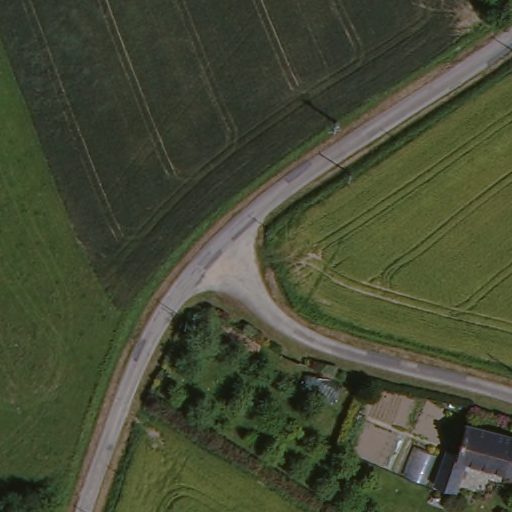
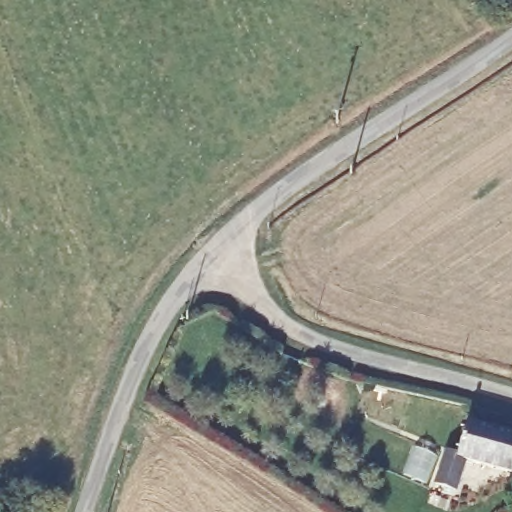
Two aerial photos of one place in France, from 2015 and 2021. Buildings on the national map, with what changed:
unchanged [(462,492),(440,485),(454,451),(463,453),(473,425),(512,435),(512,471),(477,461),(462,492)]

